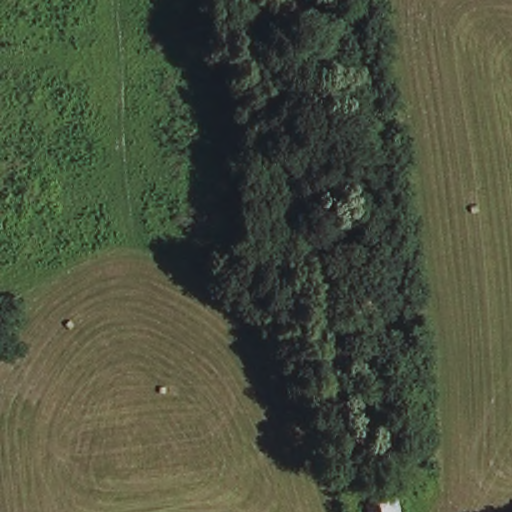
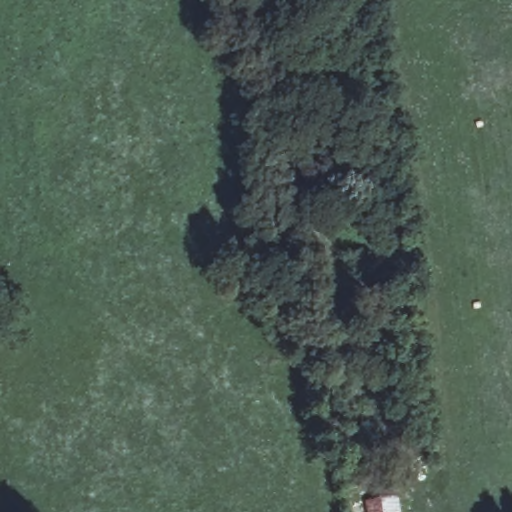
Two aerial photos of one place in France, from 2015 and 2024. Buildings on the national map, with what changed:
unchanged [(364,502),(383,501),(384,512),(347,512),(346,505),(364,502)]

